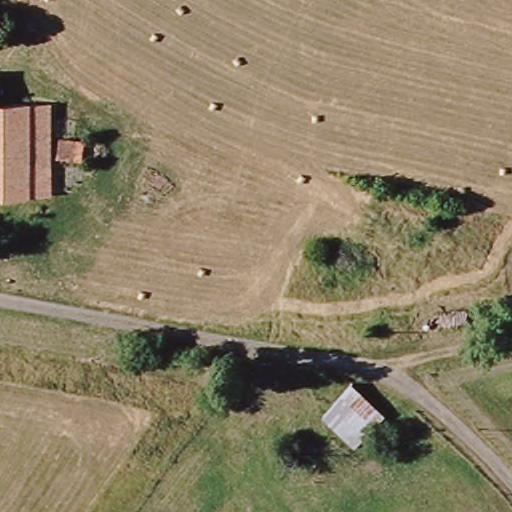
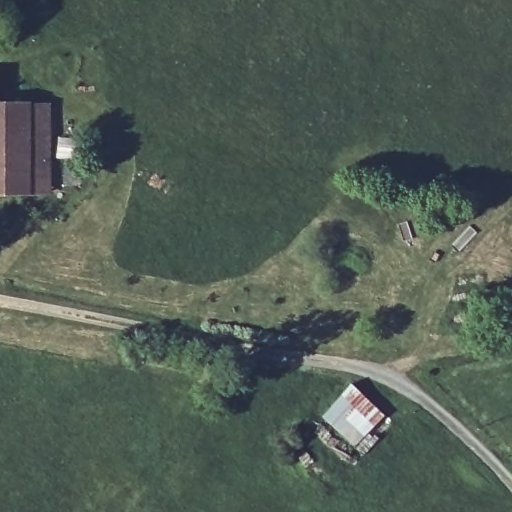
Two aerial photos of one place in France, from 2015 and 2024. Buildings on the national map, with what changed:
unchanged [(4,70),(3,98),(30,98),(34,100),(54,100),(53,160),(34,160),(35,186),(0,187),(0,71),(4,70)]
unchanged [(65,134),(87,134),(87,150),(65,150),(65,134)]
unchanged [(391,416),(362,444),(330,415),(358,383),(391,416)]

